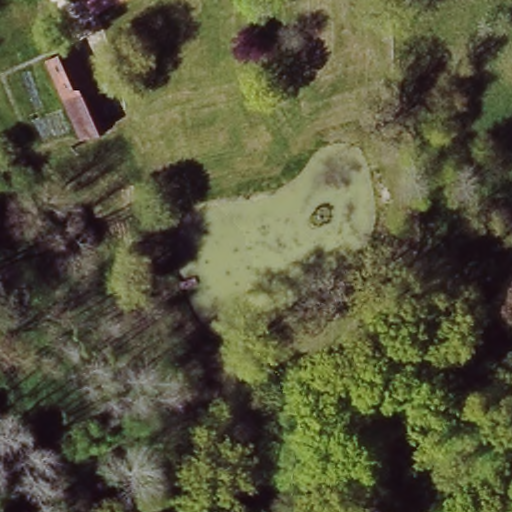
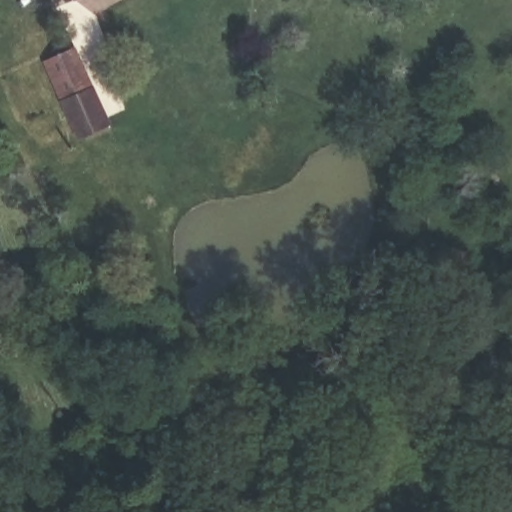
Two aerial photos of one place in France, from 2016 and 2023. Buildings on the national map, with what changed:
unchanged [(62,91),(54,68),(82,58),(109,136),(79,147),(62,91)]

